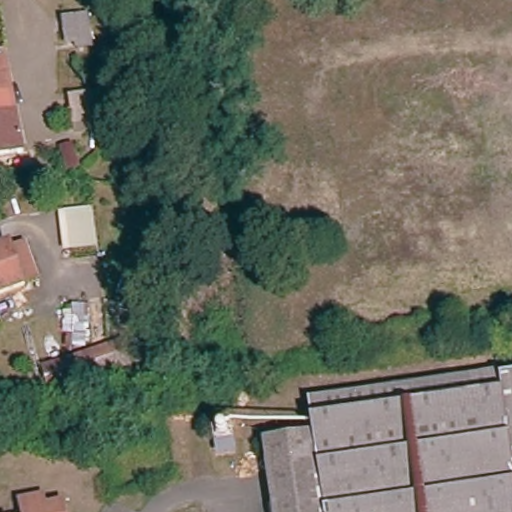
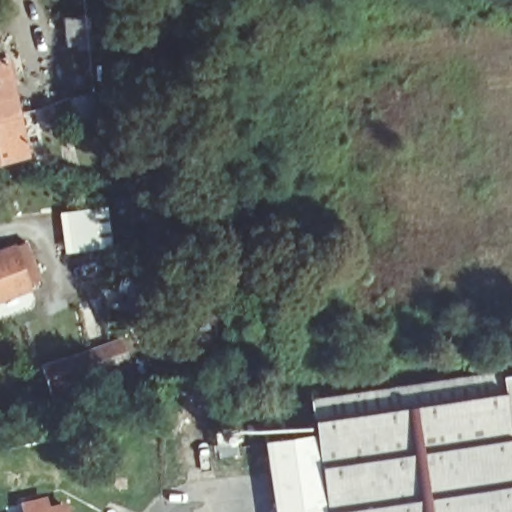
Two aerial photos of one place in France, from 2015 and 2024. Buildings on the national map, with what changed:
unchanged [(92,11),(96,37),(69,41),(65,16),(92,11)]
unchanged [(17,116),(0,117),(0,58),(4,58),(10,78),(17,116)]
unchanged [(73,100),(101,94),(112,92),(113,96),(115,120),(105,123),(77,129),(73,100)]
unchanged [(17,116),(23,152),(0,157),(0,117),(17,116)]
unchanged [(93,208),(99,247),(75,251),(69,212),(93,208)]
unchanged [(12,245),(25,240),(40,280),(27,284),(0,293),(0,249),(12,245)]
unchanged [(73,316),(89,317),(89,339),(72,339),(73,316)]
unchanged [(119,345),(123,362),(55,385),(50,366),(119,345)]
unchanged [(319,434),(315,401),(505,373),(506,380),(512,379),(512,512),(277,512),(267,442),(319,434)]
unchanged [(43,503),(45,511),(62,509),(63,512),(24,512),(23,507),(43,503)]

